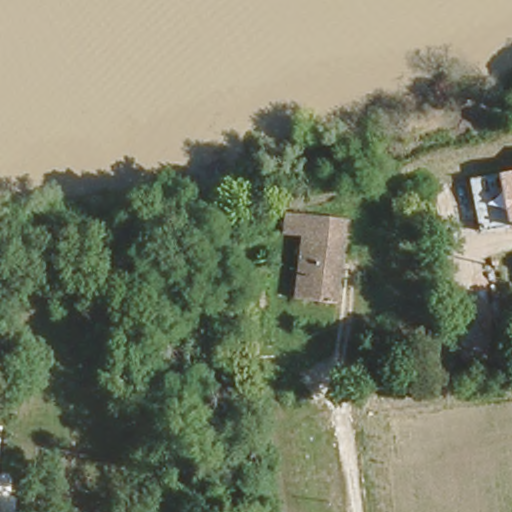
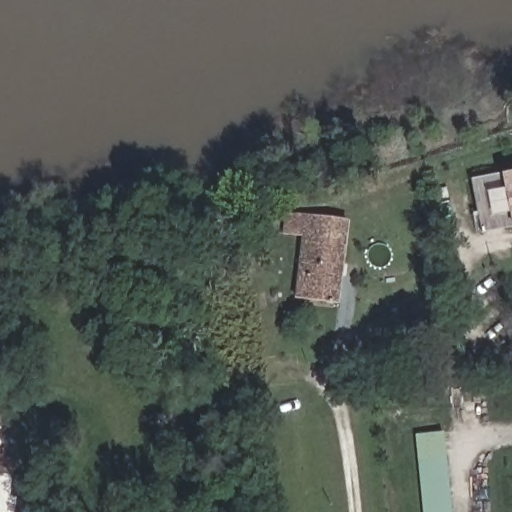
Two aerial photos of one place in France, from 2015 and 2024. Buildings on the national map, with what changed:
unchanged [(480,229),(466,170),(512,162),(512,224),(480,229)]
unchanged [(342,171),(337,301),(291,295),(305,179),(342,171)]
new [(444,432),(452,512),(423,512),(415,434),(444,432)]

